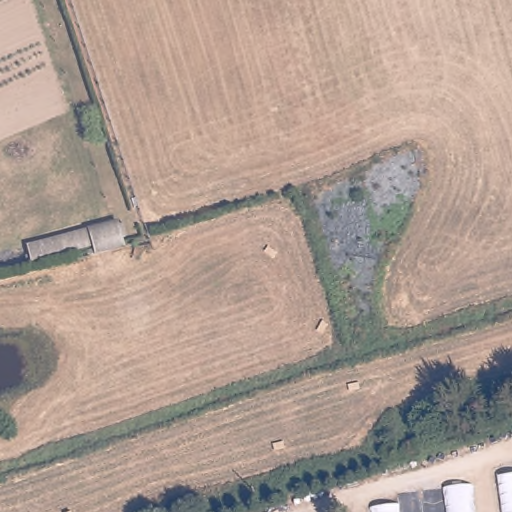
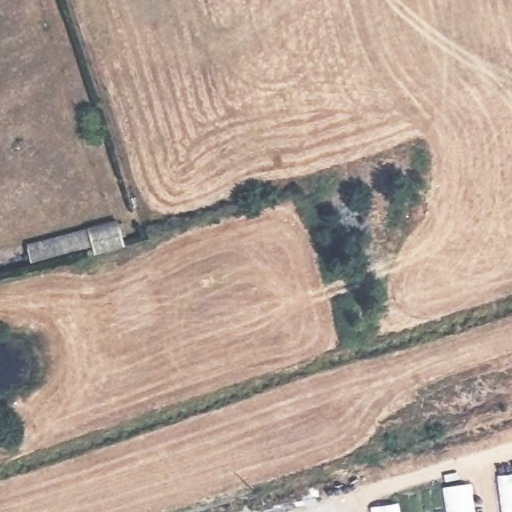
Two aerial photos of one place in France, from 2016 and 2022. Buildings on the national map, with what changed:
unchanged [(94,222),(120,221),(125,235),(44,257),(38,238),(94,222)]
unchanged [(512,473),(512,512),(501,512),(496,475),(512,473)]
unchanged [(475,480),(479,512),(450,512),(446,482),(475,480)]
unchanged [(404,498),(406,512),(373,512),(371,503),(404,498)]

